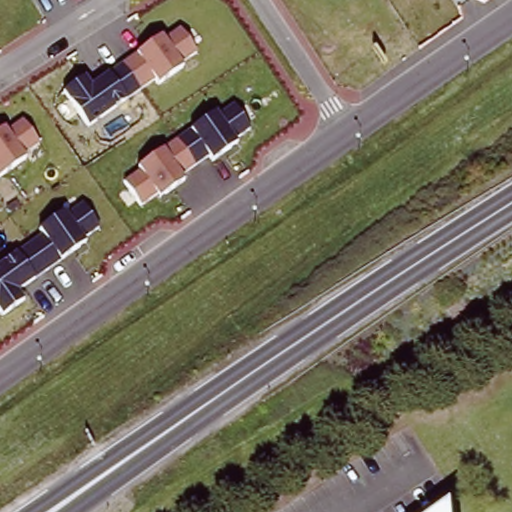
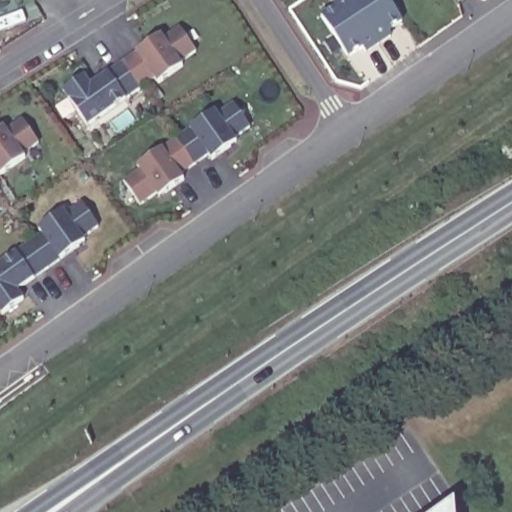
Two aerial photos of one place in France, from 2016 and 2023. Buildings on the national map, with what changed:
new [(388,31),(391,37),(366,53),(362,49),(349,58),(319,16),(344,0),(387,0),(402,22),(388,31)]
unchanged [(163,37),(178,25),(196,51),(179,62),(183,68),(158,86),(154,80),(89,126),(63,91),(84,76),(90,86),(161,34),(163,37)]
unchanged [(138,172),(136,170),(213,114),(216,116),(234,104),(251,127),(234,139),(239,145),(214,160),(209,155),(181,175),(187,183),(163,201),(158,195),(139,206),(124,181),(138,172)]
unchanged [(40,142),(23,154),(26,161),(0,180),(0,133),(22,118),(40,142)]
unchanged [(41,236),(39,231),(66,212),(68,215),(83,204),(100,228),(84,238),(87,244),(18,290),(26,303),(2,316),(0,313),(0,265),(41,236)]
unchanged [(452,507),(452,512),(444,512),(452,506),(452,507)]

